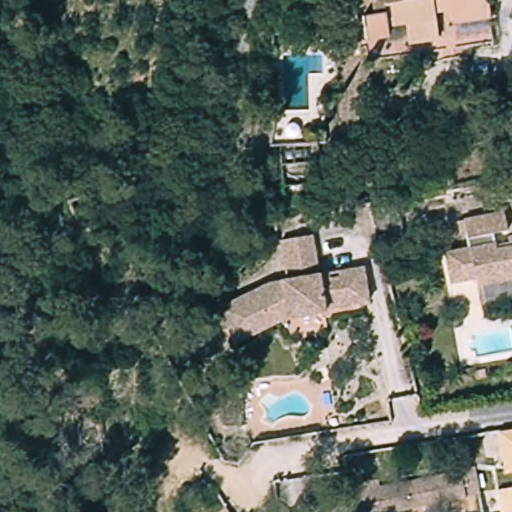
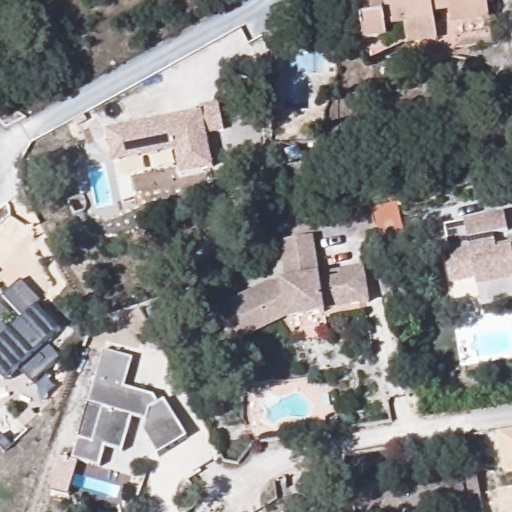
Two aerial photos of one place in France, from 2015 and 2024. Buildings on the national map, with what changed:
unchanged [(485,8),(446,14),(444,1),(429,4),(433,31),(403,36),(402,26),(389,28),(391,40),(364,44),(360,20),(373,18),(370,0),(483,0),(485,8)]
new [(201,111),(200,106),(219,102),(225,131),(207,134),(214,169),(179,176),(175,151),(113,164),(106,130),(201,111)]
unchanged [(467,219),(506,211),(511,231),(497,234),(499,248),(512,246),(512,280),(481,287),(479,279),(454,285),(447,251),(473,246),(467,219)]
unchanged [(218,306),(258,286),(291,278),(284,240),(310,235),(315,274),(362,264),(366,297),(355,299),(356,305),(325,314),(325,322),(297,331),(281,317),(233,334),(218,306)]
new [(9,332),(24,318),(2,296),(20,279),(42,303),(38,306),(60,330),(47,342),(60,357),(32,383),(19,368),(4,382),(0,378),(0,323),(9,332)]
new [(6,311),(0,316),(0,306),(6,311)]
new [(132,358),(125,387),(154,395),(158,402),(164,399),(187,437),(159,456),(143,432),(145,423),(132,419),(123,453),(105,448),(101,469),(79,463),(69,498),(51,493),(60,457),(72,460),(78,438),(103,349),(132,358)]
unchanged [(498,433),(512,431),(512,468),(504,469),(498,433)]
unchanged [(396,512),(396,508),(377,512),(367,512),(362,486),(391,480),(393,487),(470,472),(475,497),(399,512),(396,512)]
unchanged [(512,486),(512,512),(499,512),(496,488),(512,486)]

